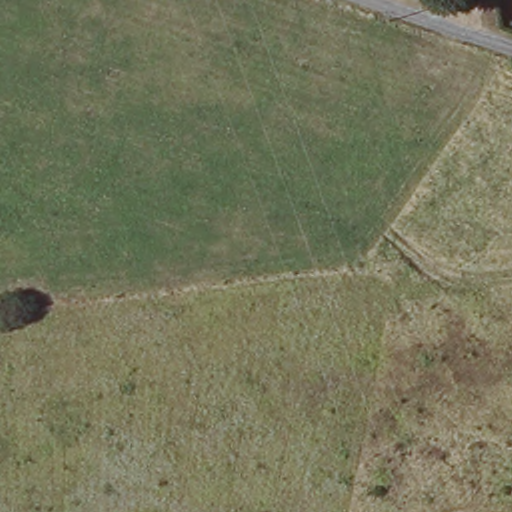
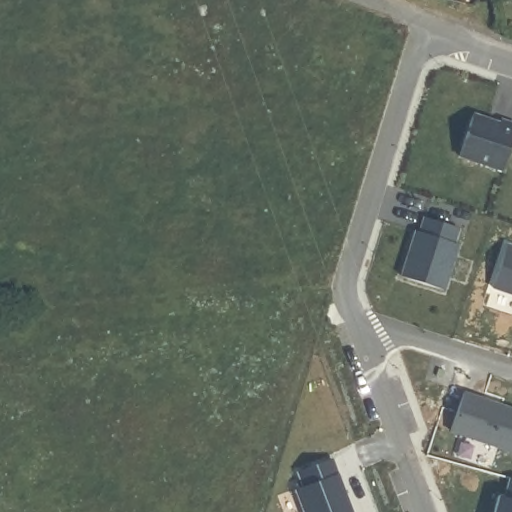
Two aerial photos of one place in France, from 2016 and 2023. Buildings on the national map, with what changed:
new [(501,117),(512,121),(512,142),(502,172),(458,157),(473,114),(498,122),(501,117)]
new [(420,232),(424,217),(458,228),(453,244),(459,246),(445,292),(399,277),(414,231),(420,232)]
new [(512,295),(492,288),(507,243),(512,245),(512,295)]
new [(512,454),(451,433),(465,391),(512,408),(512,454)]
new [(303,488),(297,472),(332,458),(352,512),(300,512),(292,492),(303,488)]
new [(509,478),(512,479),(512,512),(491,512),(496,496),(503,498),(509,478)]

